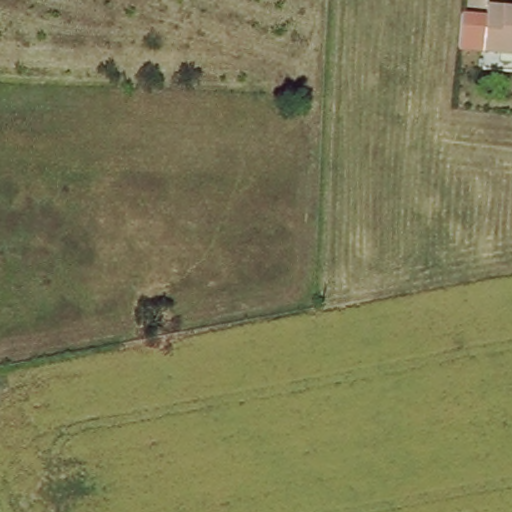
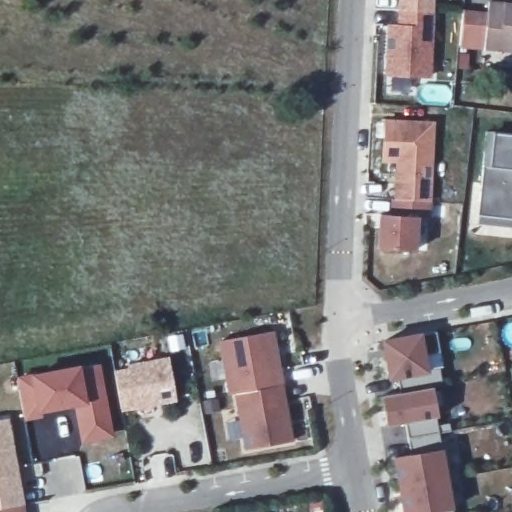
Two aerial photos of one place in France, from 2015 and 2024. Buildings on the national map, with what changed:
new [(402,5),(402,0),(433,0),(433,7),(402,5)]
new [(392,20),(402,20),(402,5),(433,7),(435,8),(432,73),(389,70),(392,20)]
unchanged [(463,14),(487,17),(489,5),(512,8),(512,50),(500,49),(499,54),(484,52),(459,49),(463,14)]
new [(432,197),(398,195),(400,156),(394,156),(395,140),(385,140),(387,116),(435,119),(432,197)]
new [(488,127),(495,128),(512,130),(512,214),(479,210),(485,161),(488,127)]
new [(382,210),(394,211),(395,195),(398,195),(432,197),(430,213),(419,213),(417,246),(380,244),(382,210)]
new [(274,328),(283,381),(231,389),(221,337),(274,328)]
new [(395,458),(413,454),(408,423),(387,428),(382,398),(402,394),(400,380),(390,382),(382,340),(420,334),(434,333),(439,353),(426,355),(430,372),(438,369),(442,388),(432,389),(437,416),(442,452),(452,508),(453,512),(404,512),(395,458)]
new [(131,366),(130,362),(169,355),(177,395),(156,399),(148,405),(138,402),(123,404),(116,369),(131,366)]
new [(18,378),(102,364),(115,436),(82,444),(75,407),(42,414),(43,419),(24,423),(18,378)]
new [(283,381),(293,437),(248,445),(237,389),(283,381)]
new [(27,512),(0,512),(0,419),(9,418),(27,512)]

